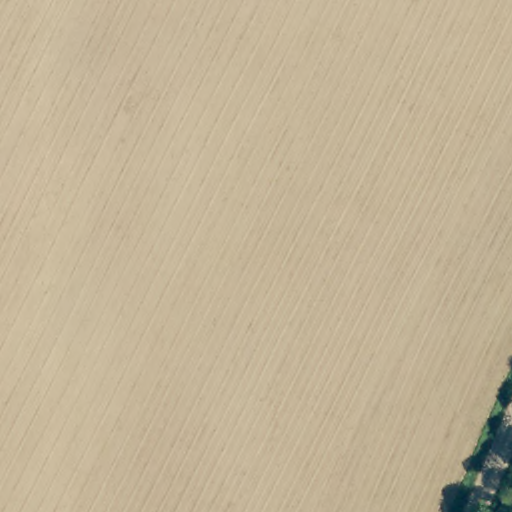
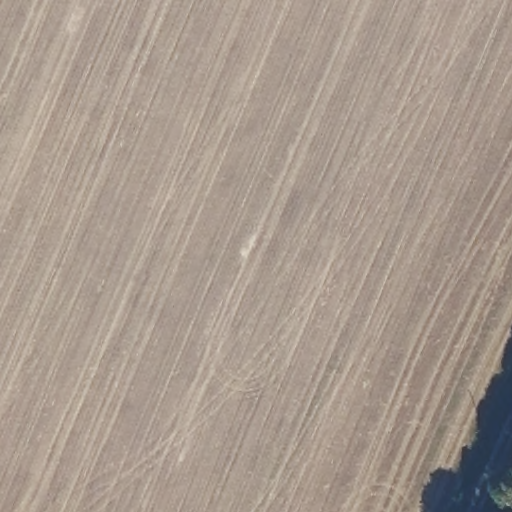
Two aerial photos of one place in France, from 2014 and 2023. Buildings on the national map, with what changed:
[]

